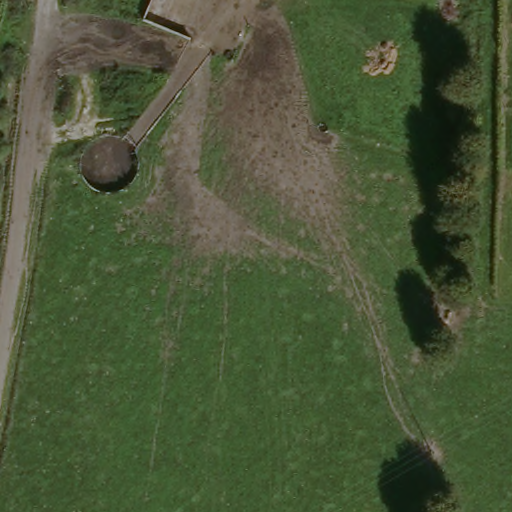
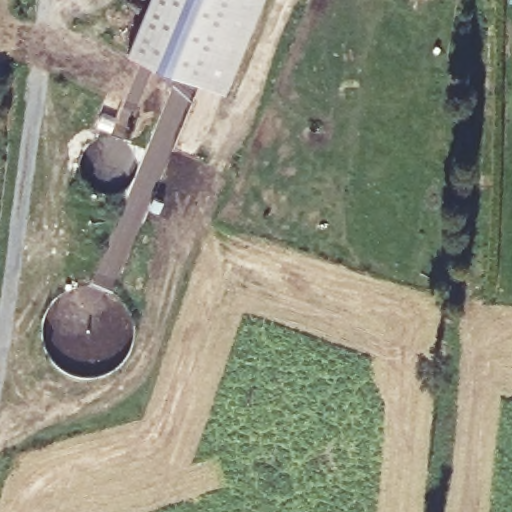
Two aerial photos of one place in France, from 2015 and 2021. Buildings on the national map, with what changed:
new [(230,88),(130,49),(149,0),(265,0),(230,88)]

